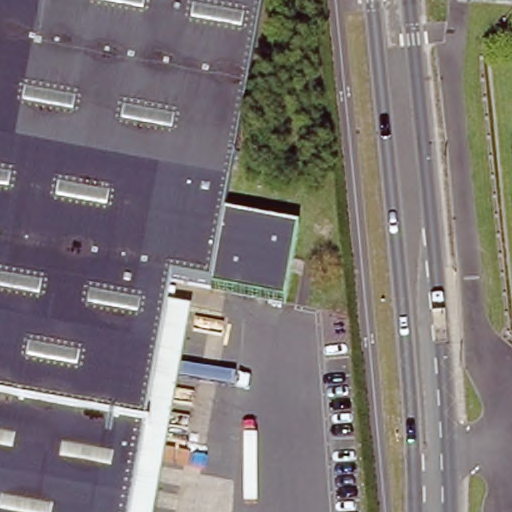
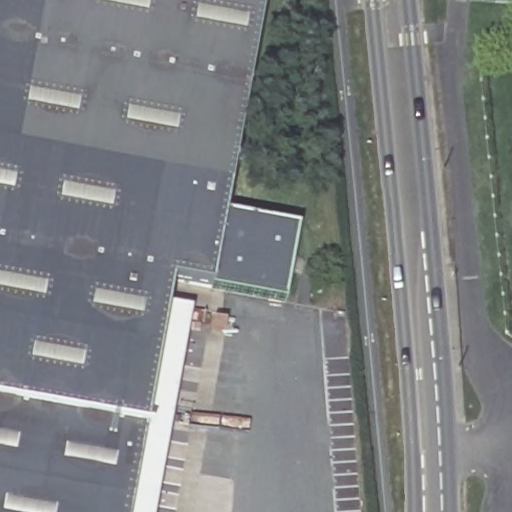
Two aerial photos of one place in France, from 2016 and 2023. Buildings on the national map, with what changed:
unchanged [(298,227),(285,302),(212,284),(172,280),(167,305),(192,307),(155,512),(0,512),(0,0),(263,0),(225,212),(298,227)]

